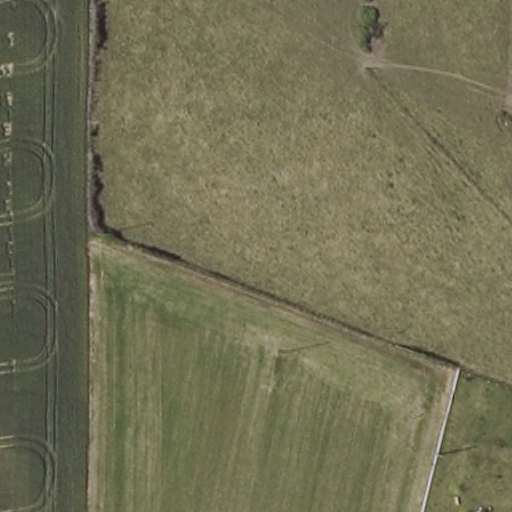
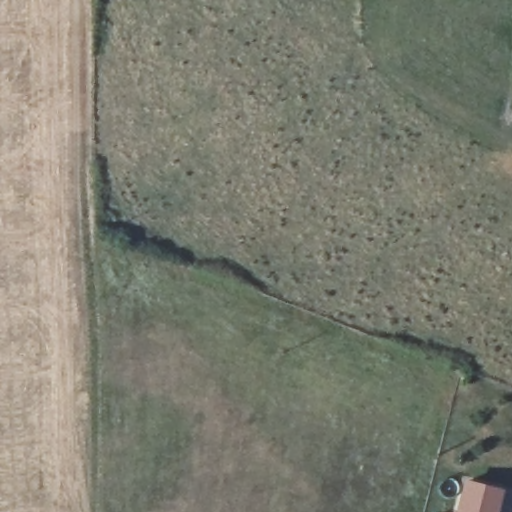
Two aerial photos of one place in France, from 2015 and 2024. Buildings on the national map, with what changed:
new [(505,488),(498,512),(457,512),(465,478),(505,488)]
demolished [(511,509),(510,512),(454,512),(458,497),(511,509)]

